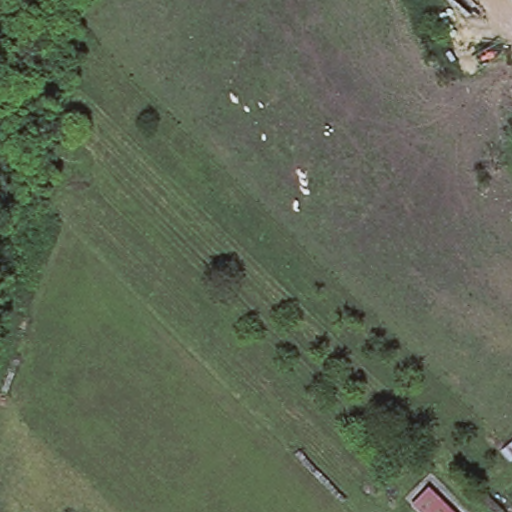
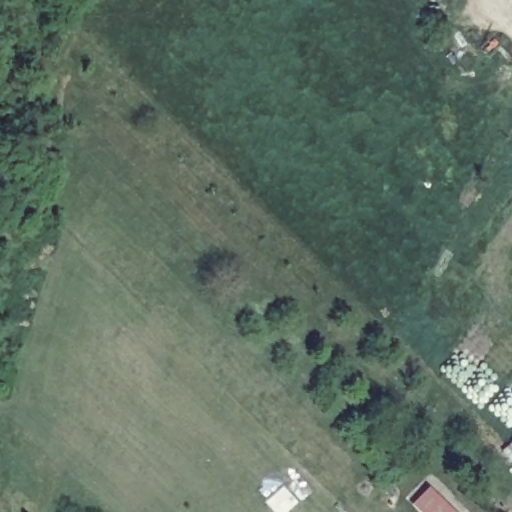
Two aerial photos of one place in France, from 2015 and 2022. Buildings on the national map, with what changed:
unchanged [(410,505),(418,497),(425,490),(429,487),(450,509),(454,512),(418,512),(410,505)]

